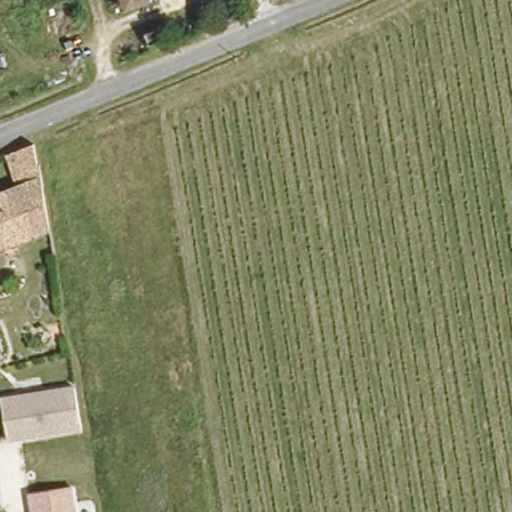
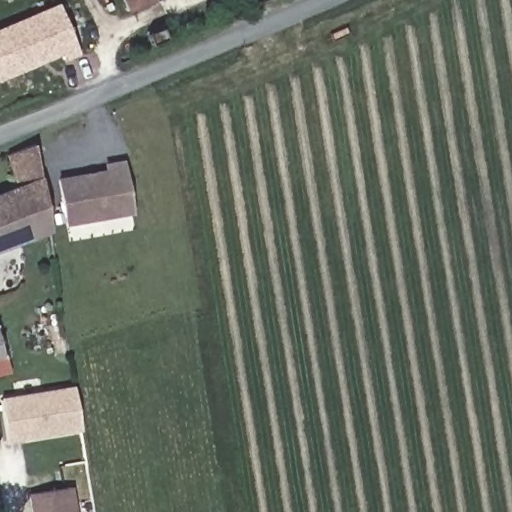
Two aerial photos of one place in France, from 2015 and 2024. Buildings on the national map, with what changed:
unchanged [(131,13),(126,0),(162,0),(131,13)]
new [(59,2),(81,54),(64,62),(61,55),(0,81),(0,28),(59,2)]
unchanged [(14,187),(4,154),(33,143),(48,230),(0,248),(0,192),(14,187)]
new [(124,160),(134,213),(65,225),(56,178),(104,169),(103,163),(124,160)]
unchanged [(0,359),(0,337),(5,358),(0,359)]
unchanged [(82,430),(11,443),(4,397),(75,385),(82,430)]
unchanged [(70,486),(75,512),(31,512),(27,493),(70,486)]

